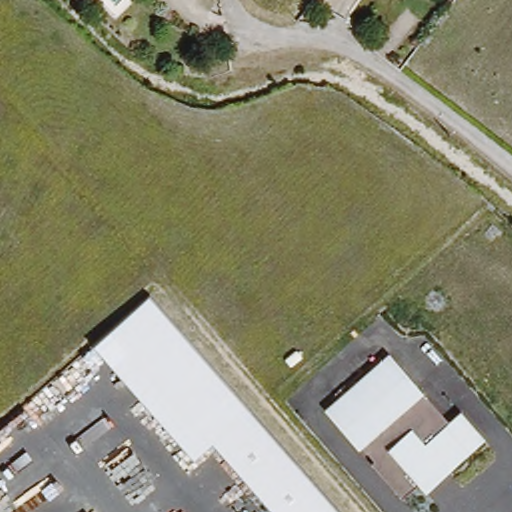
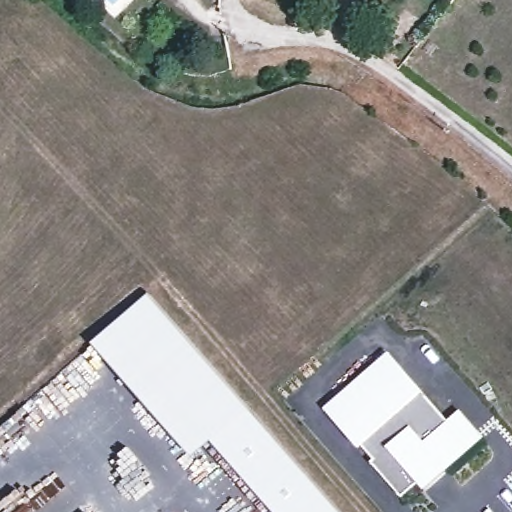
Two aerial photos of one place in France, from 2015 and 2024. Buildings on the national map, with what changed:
unchanged [(215,444),(196,457),(95,343),(150,292),(343,512),(277,512),(215,444)]
unchanged [(450,415),(462,406),(490,434),(430,488),(421,479),(402,496),(373,465),(375,459),(364,448),(360,449),(325,407),(389,347),(450,415)]

